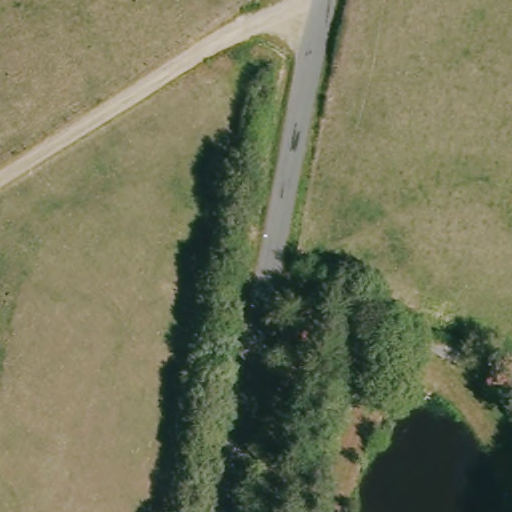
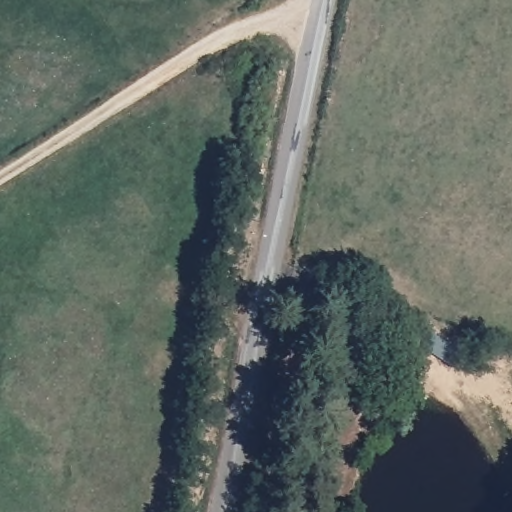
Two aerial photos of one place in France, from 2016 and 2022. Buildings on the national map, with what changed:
unchanged [(466,345),(458,359),(426,340),(434,327),(466,345)]

